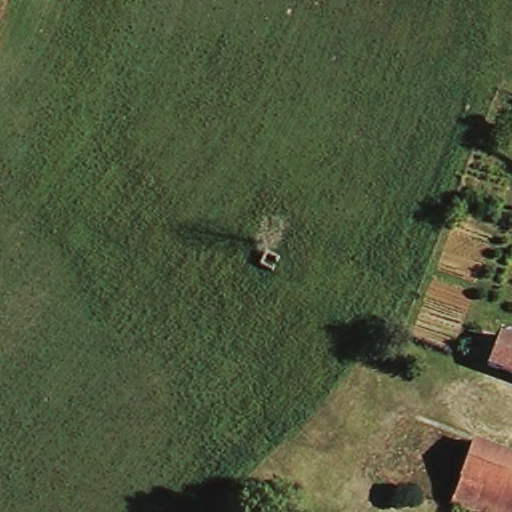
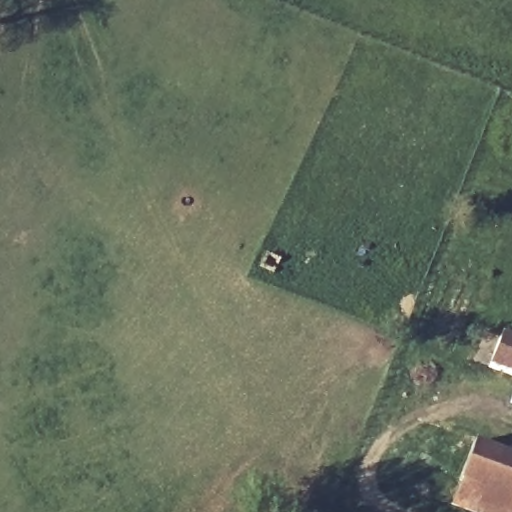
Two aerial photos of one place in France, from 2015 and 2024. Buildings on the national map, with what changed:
unchanged [(277,253),(271,266),(258,260),(264,247),(277,253)]
unchanged [(478,358),(489,330),(512,340),(512,372),(478,358)]
unchanged [(512,456),(512,512),(484,512),(454,500),(476,441),(512,456)]

